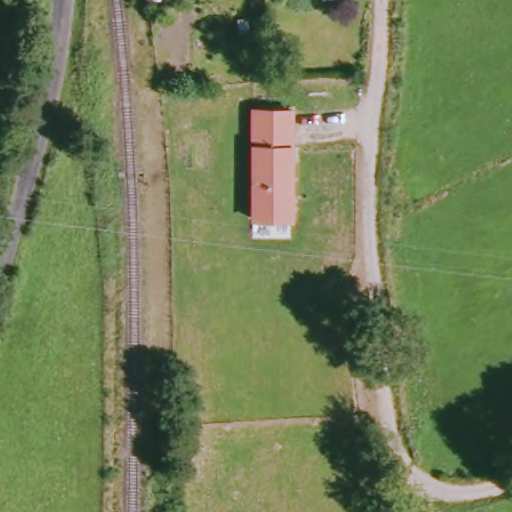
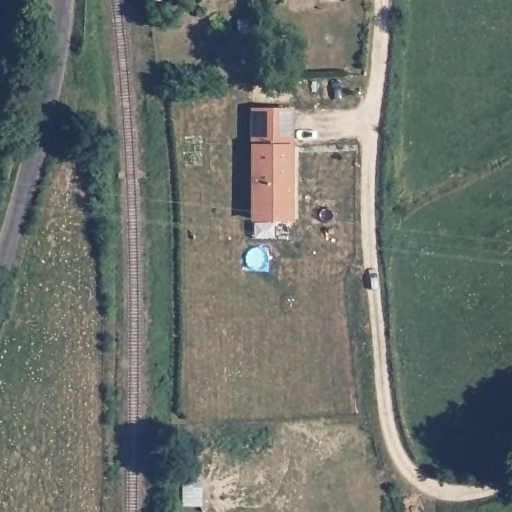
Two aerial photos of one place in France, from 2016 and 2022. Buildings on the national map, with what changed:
unchanged [(148,4),(148,0),(161,0),(148,4)]
unchanged [(294,220),(251,220),(251,109),(296,108),(294,220)]

